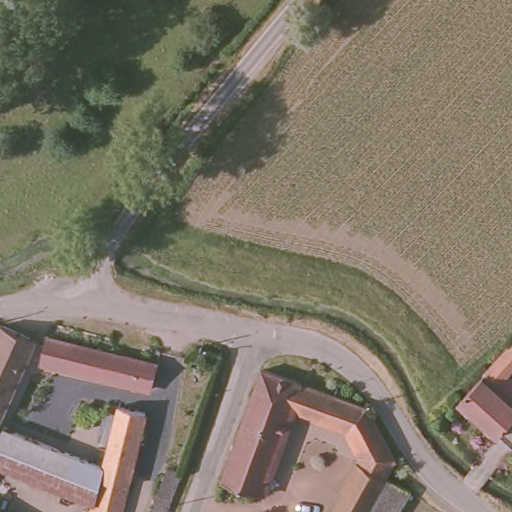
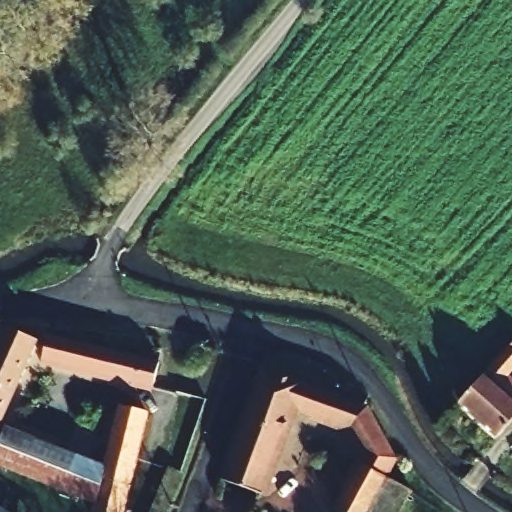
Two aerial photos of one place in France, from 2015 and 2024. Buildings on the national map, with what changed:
unchanged [(38,344),(0,425),(0,333),(2,328),(38,344)]
unchanged [(110,343),(110,357),(158,371),(151,394),(43,362),(47,341),(51,341),(55,332),(110,343)]
unchanged [(512,365),(492,387),(512,404),(512,415),(495,434),(457,401),(512,340),(512,365)]
unchanged [(263,373),(369,411),(395,463),(385,481),(367,512),(335,512),(363,461),(349,433),(291,413),(262,496),(222,484),(263,373)]
unchanged [(100,485),(97,491),(0,445),(0,439),(3,431),(93,468),(97,456),(106,457),(118,409),(147,416),(125,492),(100,485)]
unchanged [(163,512),(147,512),(166,462),(171,463),(175,457),(183,461),(163,512)]
unchanged [(385,481),(408,493),(398,512),(367,512),(385,481)]
unchanged [(120,512),(92,512),(97,491),(100,485),(125,492),(120,512)]

